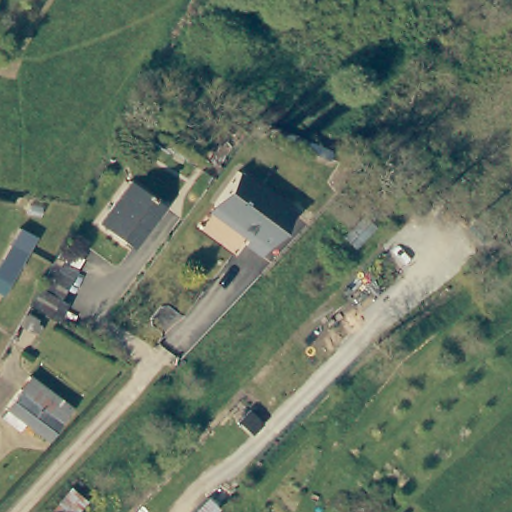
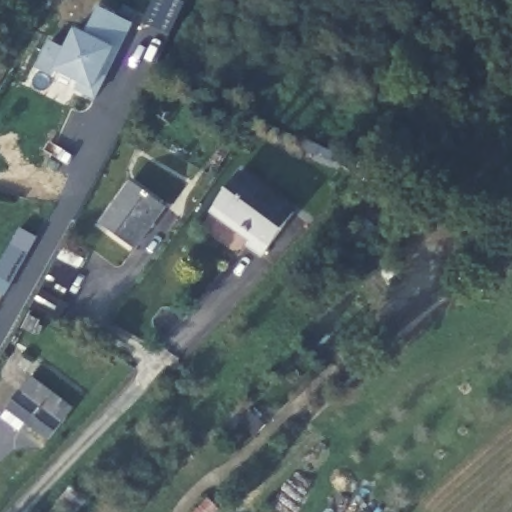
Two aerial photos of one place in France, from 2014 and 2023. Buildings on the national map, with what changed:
new [(134,24),(120,51),(114,49),(97,84),(101,88),(93,103),(71,93),(76,83),(52,69),(49,78),(31,69),(47,40),(64,48),(75,28),(86,34),(99,9),(134,24)]
unchanged [(220,200),(241,172),(292,208),(262,250),(249,240),(252,235),(214,207),(220,200)]
unchanged [(164,202),(132,247),(98,224),(129,179),(164,202)]
new [(35,239),(4,298),(0,296),(0,266),(19,231),(35,239)]
unchanged [(72,413),(49,441),(10,409),(32,380),(72,413)]

